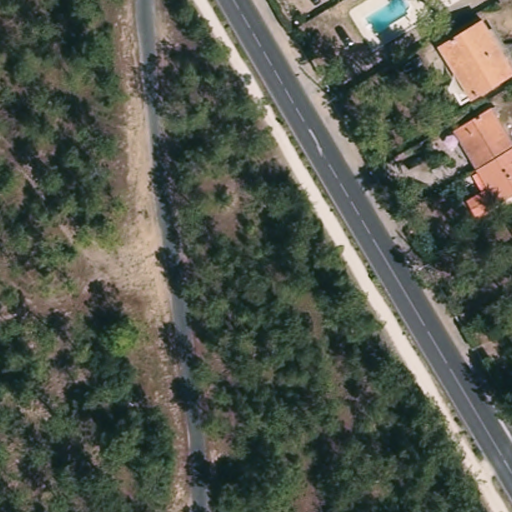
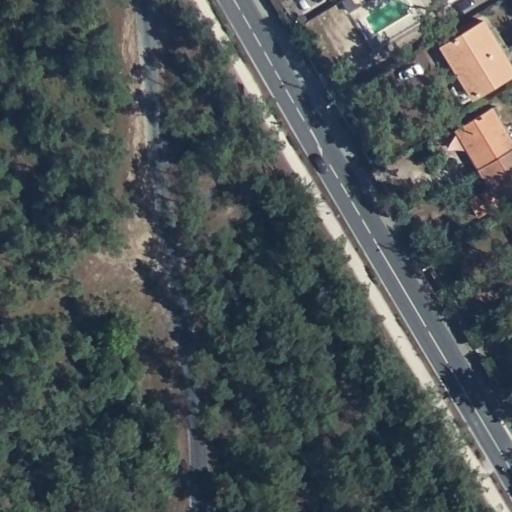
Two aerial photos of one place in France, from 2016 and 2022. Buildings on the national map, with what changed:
unchanged [(442,0),(432,5),(429,0),(442,0)]
unchanged [(512,62),(512,78),(476,100),(443,49),(487,21),(512,62)]
unchanged [(453,134),(492,109),(512,141),(512,149),(476,171),(453,134)]
unchanged [(479,218),(469,203),(488,190),(476,171),(512,149),(512,197),(479,218)]

